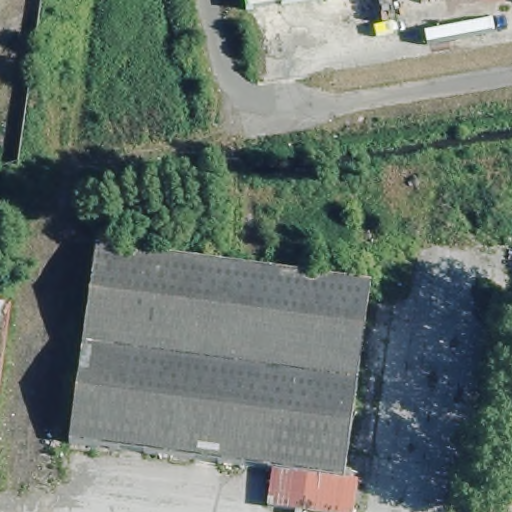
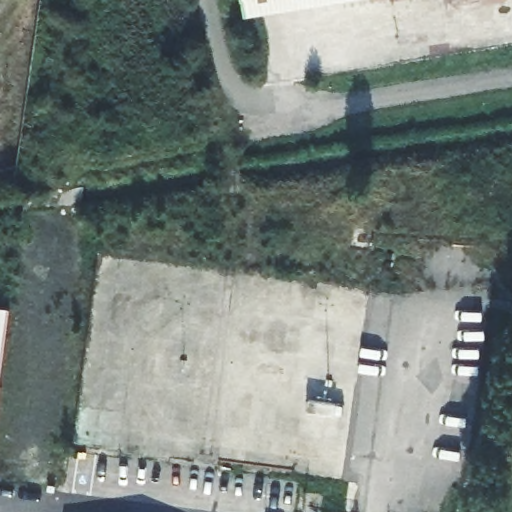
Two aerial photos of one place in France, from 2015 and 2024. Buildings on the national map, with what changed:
unchanged [(273,11),(247,16),(244,5),(243,0),(337,0),(273,11)]
demolished [(342,482),(356,485),(352,512),(288,512),(266,509),(271,473),(67,446),(95,249),(369,285),(342,482)]

